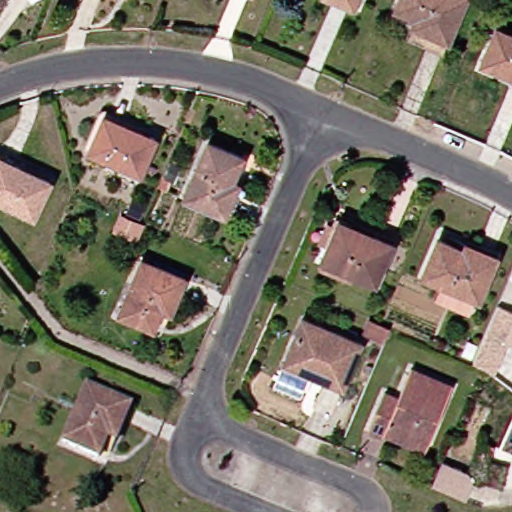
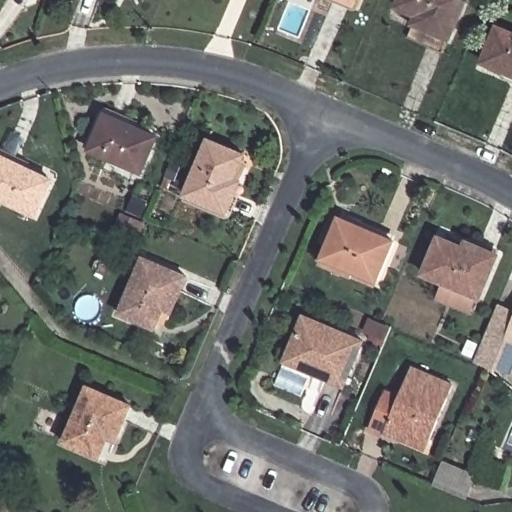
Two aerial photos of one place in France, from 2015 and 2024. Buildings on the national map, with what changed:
unchanged [(339,0),(357,0),(354,6),(339,0)]
unchanged [(413,38),(419,25),(422,19),(401,9),(405,0),(471,0),(455,39),(449,54),(447,53),(433,47),(413,38)]
unchanged [(483,64),(498,28),(512,35),(512,76),(483,64)]
unchanged [(158,138),(142,175),(91,151),(108,115),(158,138)]
unchanged [(247,157),(236,180),(242,183),(228,214),(187,197),(209,141),(247,157)]
unchanged [(0,200),(0,157),(53,182),(36,217),(0,200)]
unchanged [(379,285),(323,260),(339,218),(396,242),(379,285)]
unchanged [(437,301),(444,284),(423,275),(438,238),(464,249),(468,242),(499,257),(483,300),(479,299),(472,316),(437,301)]
unchanged [(173,313),(164,309),(155,331),(119,315),(144,260),(187,279),(173,313)]
unchanged [(364,343),(346,389),(285,363),(305,317),(364,343)]
unchanged [(389,329),(384,340),(366,332),(371,321),(389,329)]
unchanged [(508,341),(512,332),(512,343),(508,341)]
unchanged [(371,429),(386,391),(401,398),(414,368),(455,386),(432,441),(427,453),(402,441),(371,429)]
unchanged [(117,442),(109,439),(101,459),(64,443),(89,388),(133,406),(117,442)]
unchanged [(483,431),(479,442),(494,447),(484,485),(466,480),(472,457),(453,453),(462,425),(483,431)]

